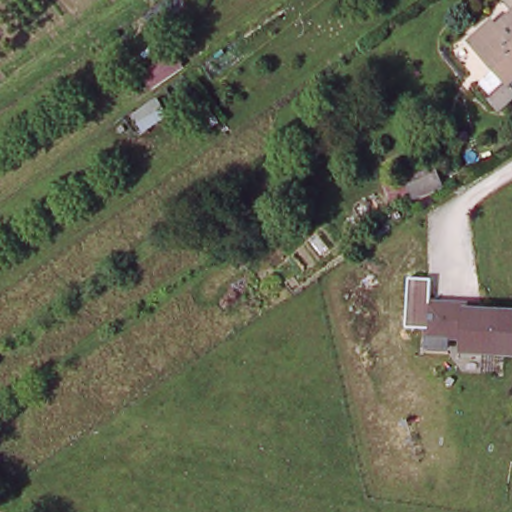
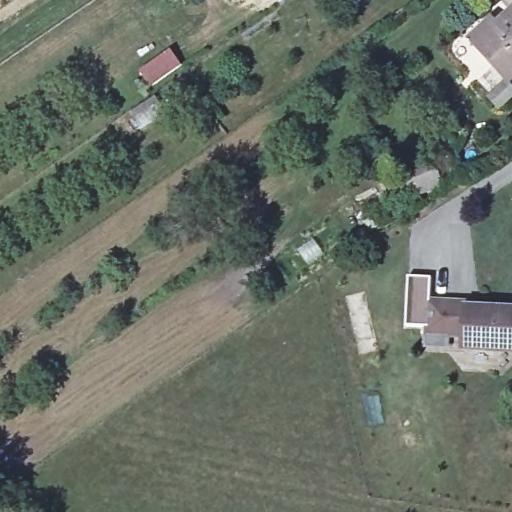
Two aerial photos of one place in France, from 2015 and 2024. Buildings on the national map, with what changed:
unchanged [(471,48),(490,30),(495,36),(512,21),(512,83),(507,88),(471,48)]
unchanged [(411,199),(400,169),(430,156),(441,184),(411,199)]
unchanged [(497,353),(463,351),(463,345),(428,342),(431,303),(501,305),(497,353)]

